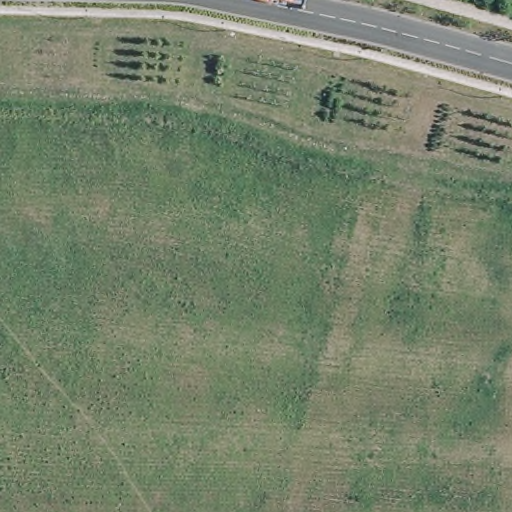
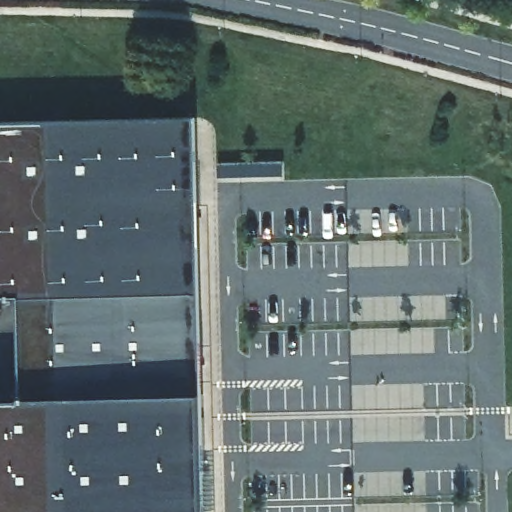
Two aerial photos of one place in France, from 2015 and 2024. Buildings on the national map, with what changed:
new [(37,308),(0,309),(0,135),(202,132),(212,401),(222,401),(221,512),(0,512),(0,414),(39,413),(37,308)]

